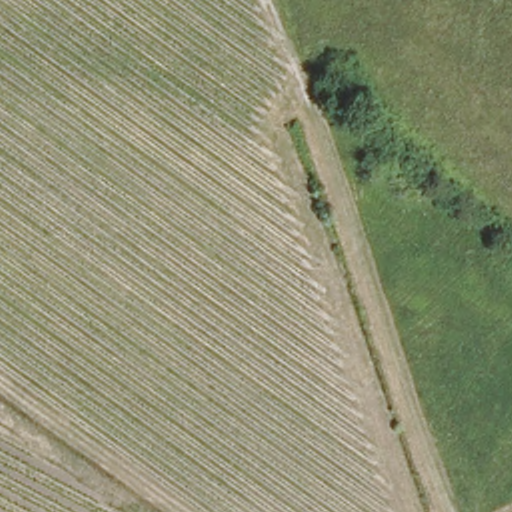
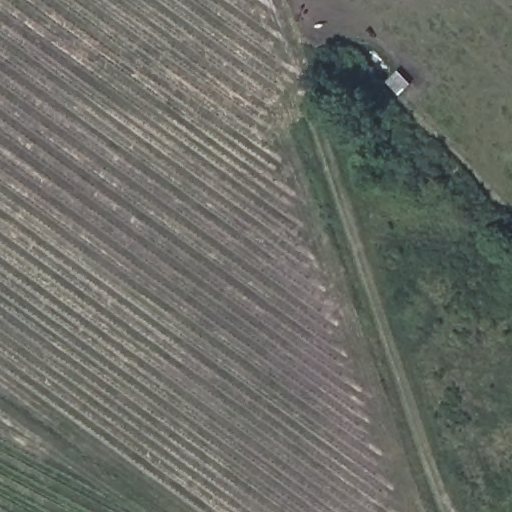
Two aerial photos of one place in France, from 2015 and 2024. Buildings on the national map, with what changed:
[]

